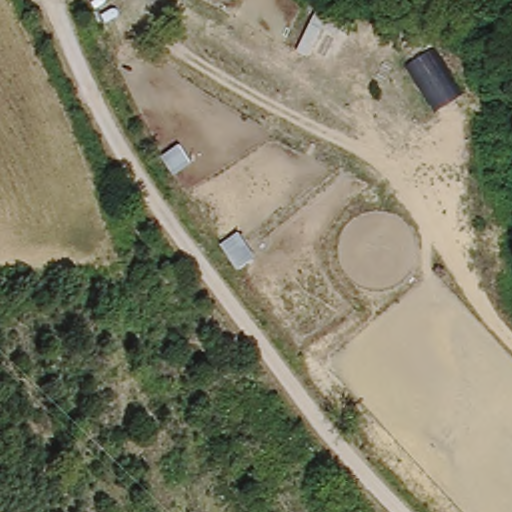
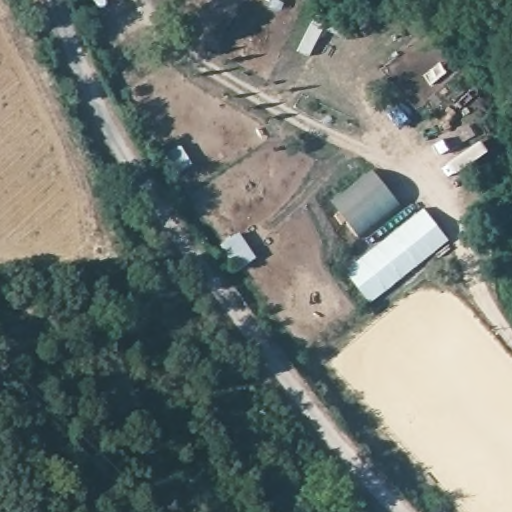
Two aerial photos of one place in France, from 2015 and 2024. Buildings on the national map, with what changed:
unchanged [(409,62),(433,48),(461,95),(438,109),(409,62)]
new [(358,238),(334,204),(374,173),(399,206),(358,238)]
new [(448,239),(369,302),(346,271),(423,208),(448,239)]

